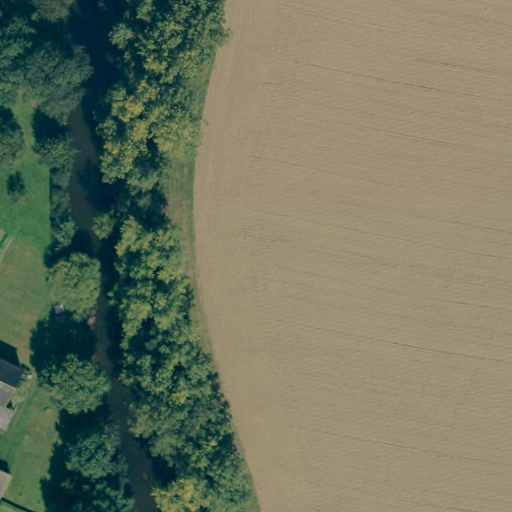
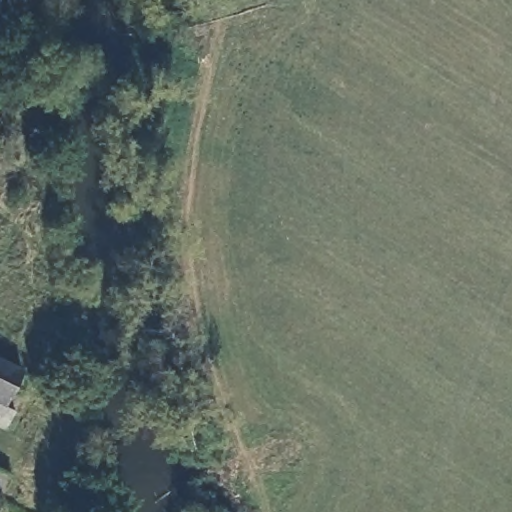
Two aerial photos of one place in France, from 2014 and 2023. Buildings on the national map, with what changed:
unchanged [(0,398),(0,358),(19,368),(0,398)]
unchanged [(0,426),(0,400),(11,407),(1,426),(0,426)]
unchanged [(0,472),(1,473),(0,475),(0,472)]

